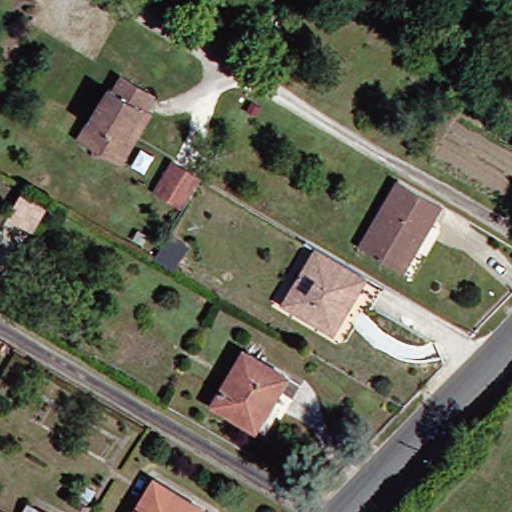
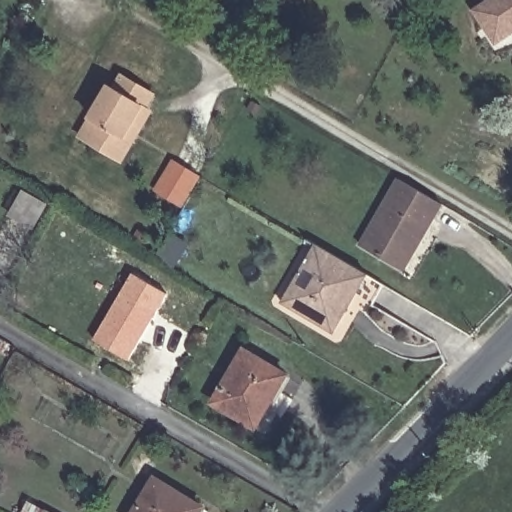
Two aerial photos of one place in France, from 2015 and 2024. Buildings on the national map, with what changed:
new [(495,44),(474,11),(491,0),(512,0),(512,33),(495,44)]
unchanged [(89,120),(109,85),(115,88),(122,76),(155,95),(147,109),(151,111),(134,141),(123,161),(86,138),(81,135),(89,120)]
unchanged [(157,191),(175,162),(202,178),(185,207),(157,191)]
unchanged [(448,202),(440,216),(437,214),(419,245),(422,247),(410,267),(367,241),(404,176),(448,202)]
unchanged [(22,188),(49,201),(36,229),(10,215),(22,188)]
unchanged [(384,282),(372,302),(355,292),(332,330),(280,299),(300,266),(315,240),(327,248),(367,272),(384,282)]
new [(127,360),(95,341),(134,275),(166,293),(127,360)]
unchanged [(257,430),(218,404),(252,352),(291,376),(257,430)]
unchanged [(205,501),(199,512),(137,512),(159,475),(205,501)]
unchanged [(47,512),(26,512),(29,504),(47,512)]

